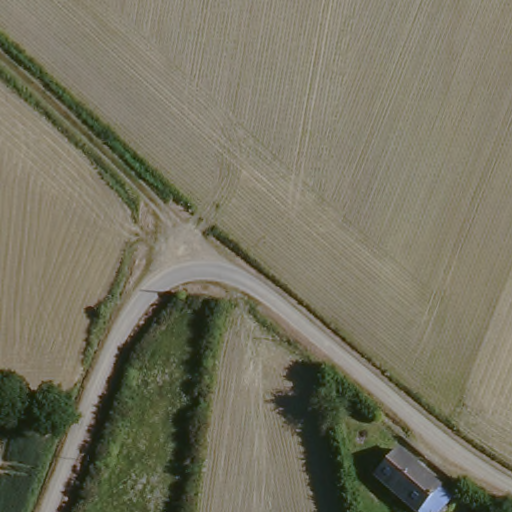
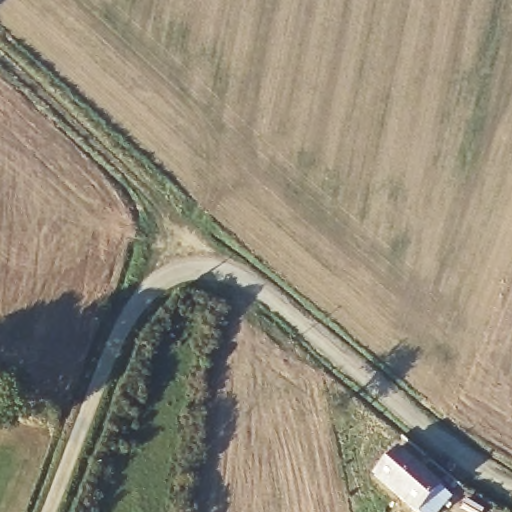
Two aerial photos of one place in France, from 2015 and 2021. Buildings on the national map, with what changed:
unchanged [(441,489),(420,512),(419,512),(375,473),(397,449),(441,489)]

